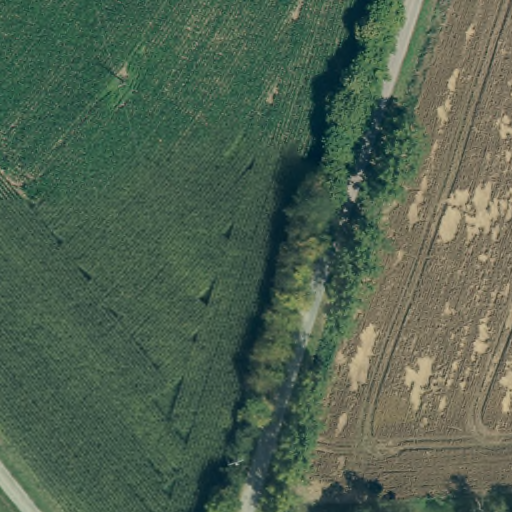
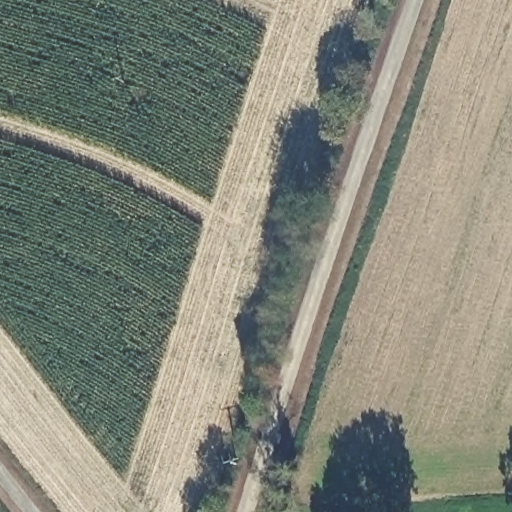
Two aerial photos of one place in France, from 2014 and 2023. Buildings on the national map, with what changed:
[]

